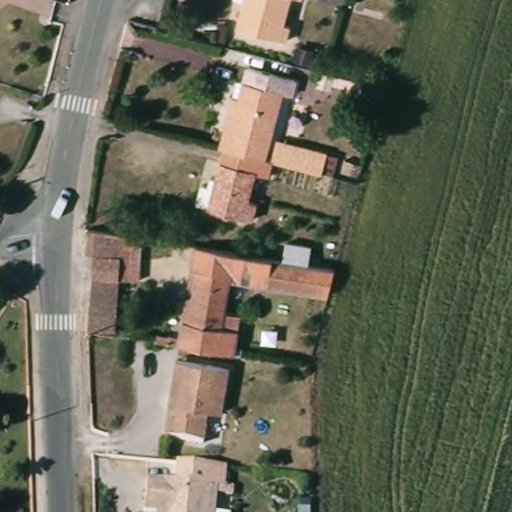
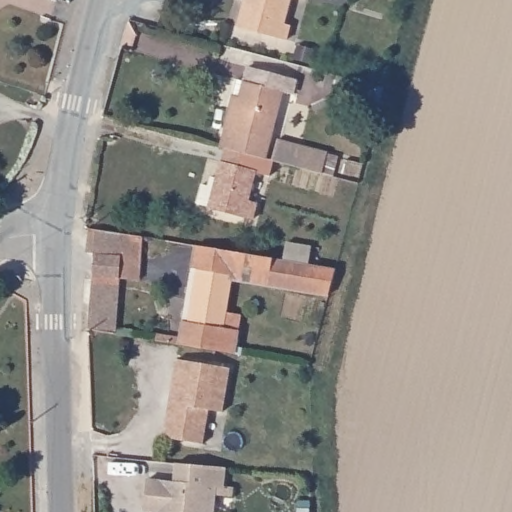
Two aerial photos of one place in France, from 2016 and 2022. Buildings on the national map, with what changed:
unchanged [(282,20),(287,21),(283,35),(235,22),(240,0),(287,0),(282,20)]
unchanged [(241,93),(249,62),(298,74),(294,90),(284,87),(267,152),(228,142),(223,141),(227,125),(235,92),(241,93)]
unchanged [(215,170),(221,172),(228,142),(267,152),(275,154),(277,155),(273,170),(258,167),(251,196),(260,198),(257,214),(212,202),(200,200),(205,180),(211,182),(215,170)]
unchanged [(98,247),(86,245),(90,222),(95,223),(128,229),(121,273),(114,330),(86,325),(95,269),(98,247)]
unchanged [(142,231),(150,232),(134,333),(114,330),(121,273),(128,229),(142,231)]
unchanged [(272,256),(288,258),(290,241),(315,245),(313,262),(335,266),(337,267),(347,268),(339,297),(232,280),(227,313),(241,315),(236,345),(242,346),(241,355),(235,354),(195,347),(166,343),(167,336),(181,338),(195,244),(266,255),(272,256)]
unchanged [(230,364),(224,407),(210,405),(204,440),(165,433),(177,355),(230,364)]
unchanged [(142,510),(145,478),(214,484),(211,512),(216,512),(154,512),(155,512),(142,510)]
unchanged [(307,512),(295,512),(295,507),(307,508),(307,512)]

